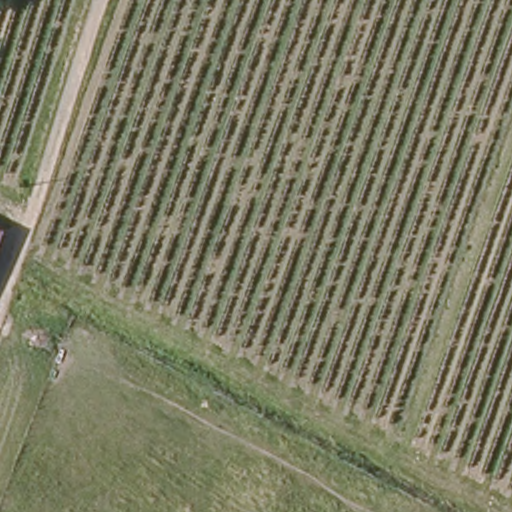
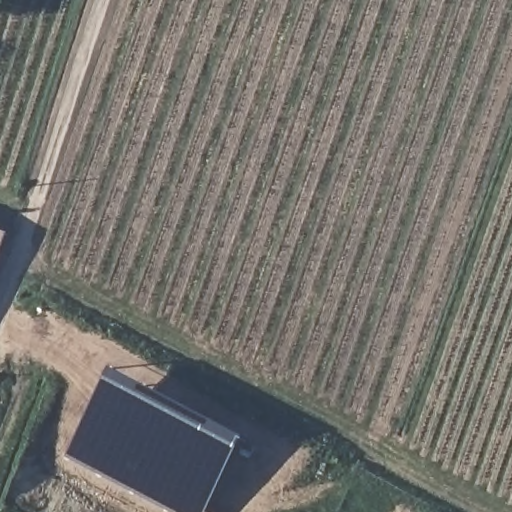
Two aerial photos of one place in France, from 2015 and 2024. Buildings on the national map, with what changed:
unchanged [(2,240),(0,248),(0,239),(2,240)]
new [(205,512),(169,512),(64,457),(110,367),(245,438),(205,512)]

